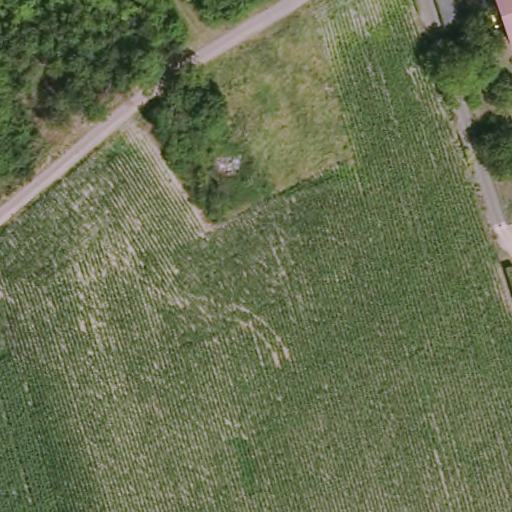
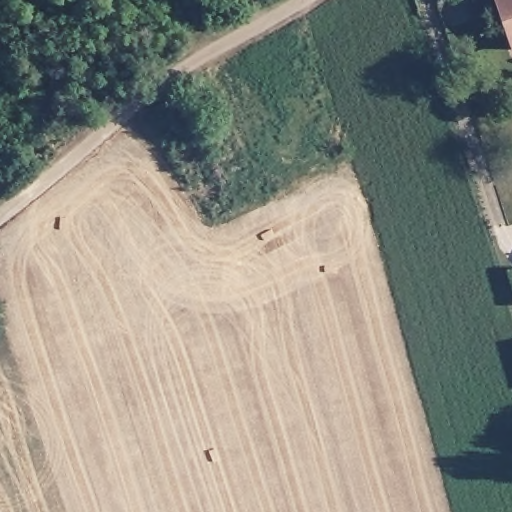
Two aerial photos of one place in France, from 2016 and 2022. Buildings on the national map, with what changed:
unchanged [(512,42),(497,0),(512,0),(512,42)]

